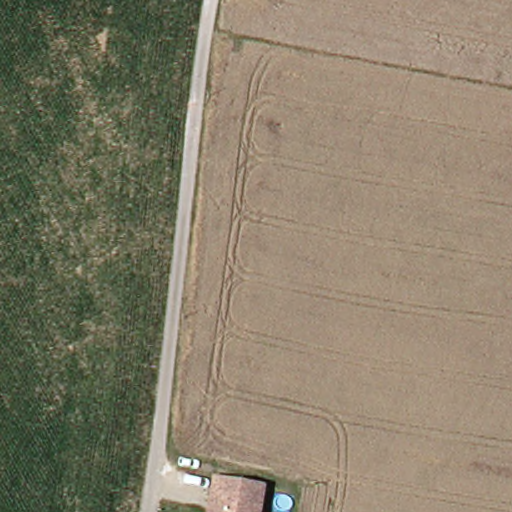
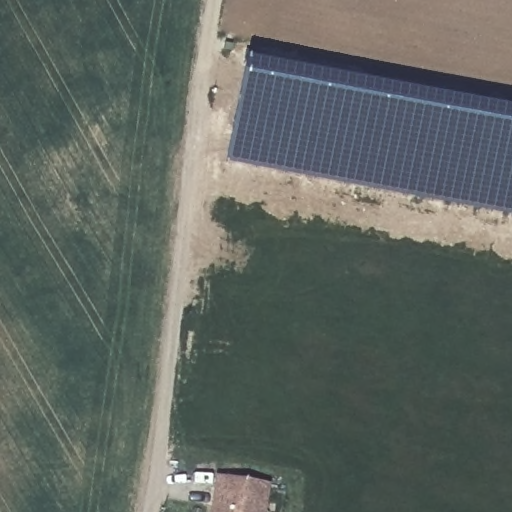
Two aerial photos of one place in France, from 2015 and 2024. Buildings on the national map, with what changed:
new [(226,164),(244,61),(512,112),(512,217),(226,164)]
unchanged [(265,512),(211,512),(212,511),(216,479),(268,485),(265,512)]

